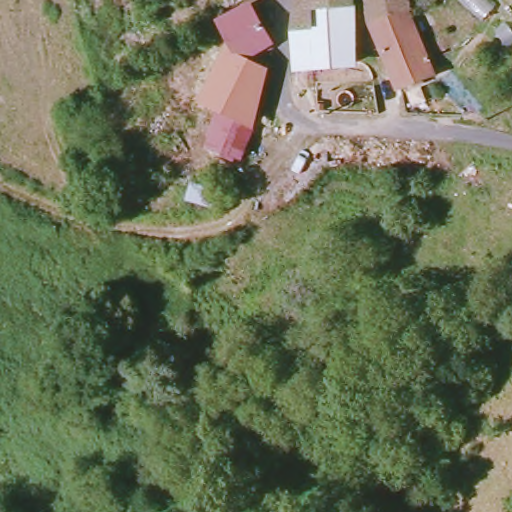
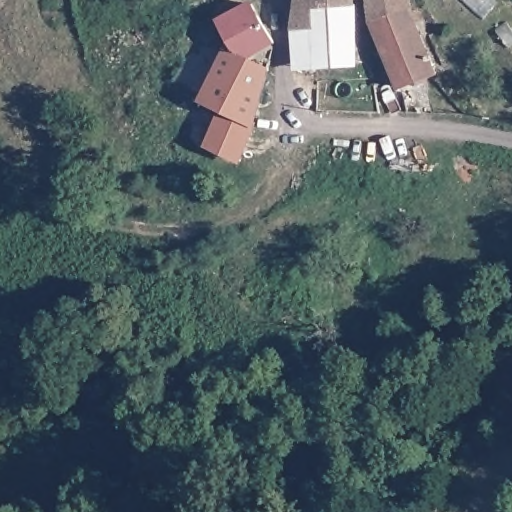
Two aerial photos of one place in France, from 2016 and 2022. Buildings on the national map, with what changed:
unchanged [(353,0),(352,2),(360,63),(320,72),(300,72),(305,39),(304,0),(353,0)]
unchanged [(406,0),(410,10),(423,46),(440,72),(403,85),(373,19),(369,0),(406,0)]
unchanged [(228,39),(219,13),(251,2),(276,34),(275,39),(250,58),(270,68),(255,119),(220,105),(200,96),(228,39)]
unchanged [(209,142),(220,105),(255,119),(240,159),(209,142)]

